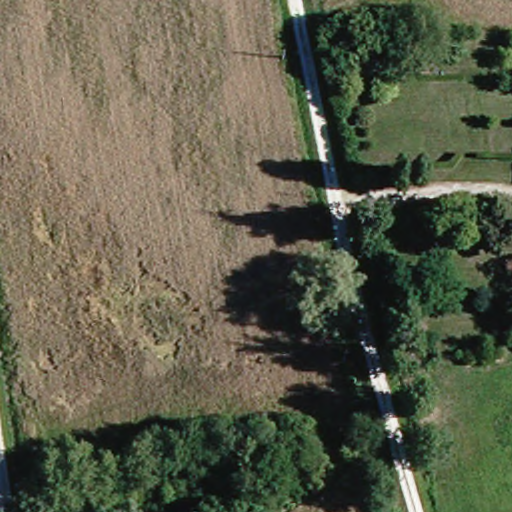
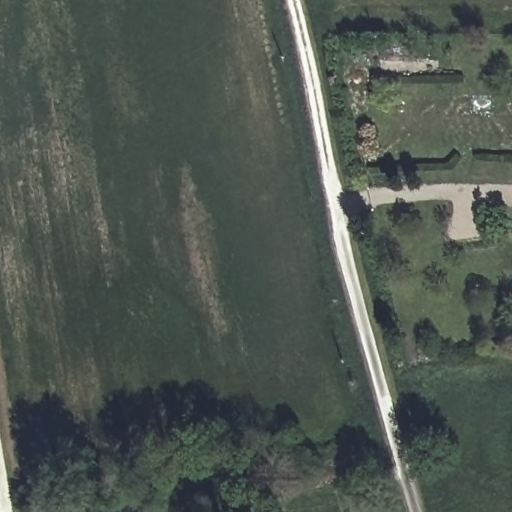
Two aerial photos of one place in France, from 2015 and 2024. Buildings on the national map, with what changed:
[]

